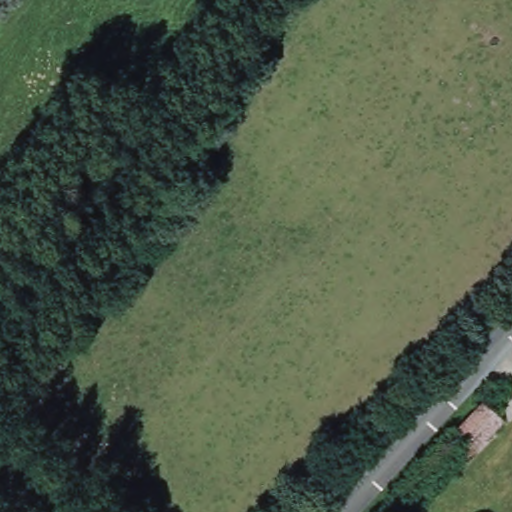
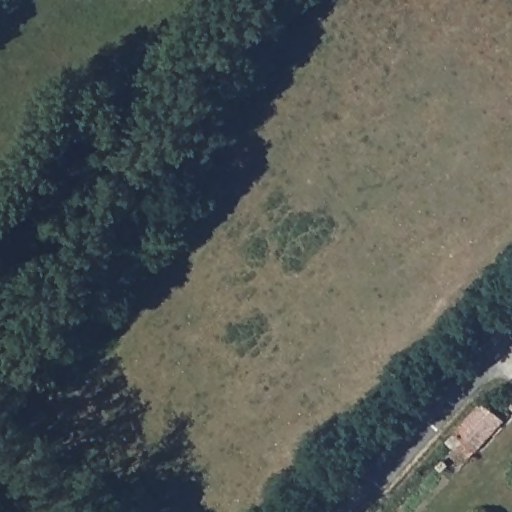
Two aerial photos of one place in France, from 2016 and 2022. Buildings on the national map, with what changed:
unchanged [(481,407),(501,424),(470,456),(450,439),(481,407)]
unchanged [(436,467),(445,474),(440,481),(431,473),(436,467)]

